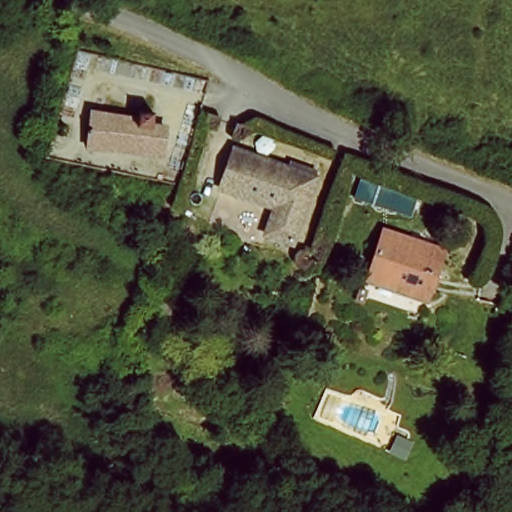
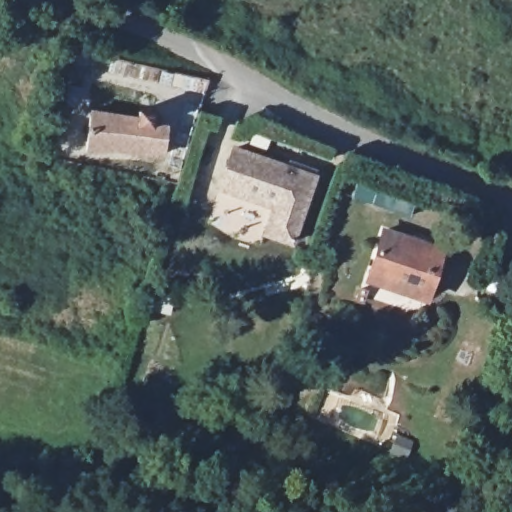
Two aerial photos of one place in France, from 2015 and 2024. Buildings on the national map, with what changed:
unchanged [(135,116),(136,110),(158,112),(158,125),(171,126),(169,153),(90,148),(92,114),(135,116)]
unchanged [(300,240),(276,234),(280,211),(225,193),(237,153),(316,176),(300,240)]
unchanged [(366,279),(383,233),(449,252),(428,308),(399,296),(366,279)]

